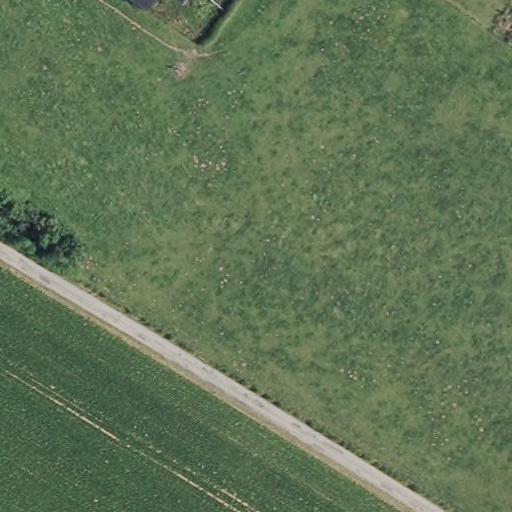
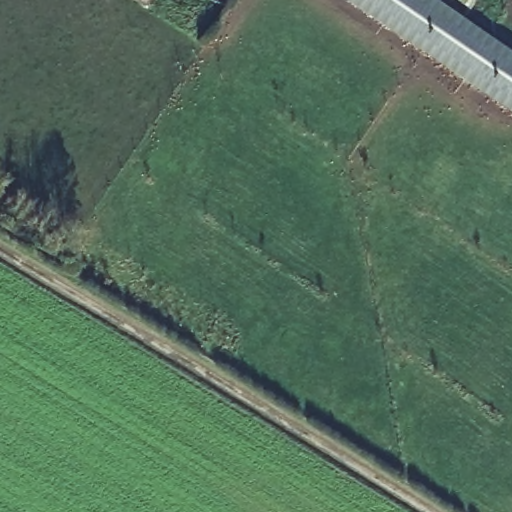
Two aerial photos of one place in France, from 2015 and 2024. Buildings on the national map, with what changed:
unchanged [(142,7),(131,0),(147,0),(143,5),(142,7)]
unchanged [(178,0),(180,0),(179,1),(178,0)]
new [(341,0),(433,0),(512,52),(512,114),(341,0)]

